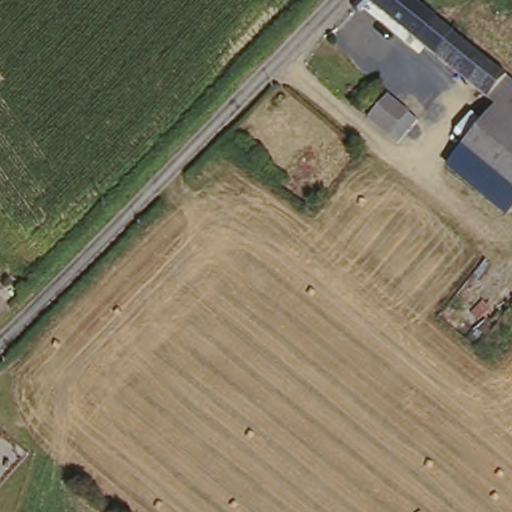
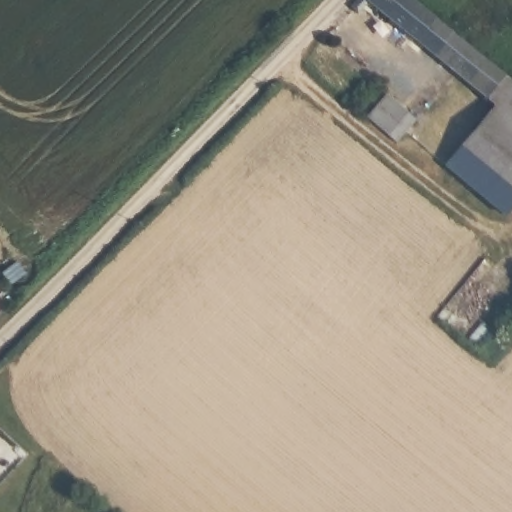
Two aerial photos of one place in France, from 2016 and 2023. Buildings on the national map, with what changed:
unchanged [(512,98),(495,117),(483,106),(435,64),(374,9),(363,19),(355,11),(366,0),(412,0),(512,90),(512,98)]
unchanged [(395,149),(386,141),(375,129),(365,119),(382,98),(392,108),(405,119),(415,128),(395,149)]
unchanged [(512,98),(512,131),(495,117),(512,98)]
unchanged [(512,209),(508,213),(452,167),(495,117),(512,131),(512,209)]

